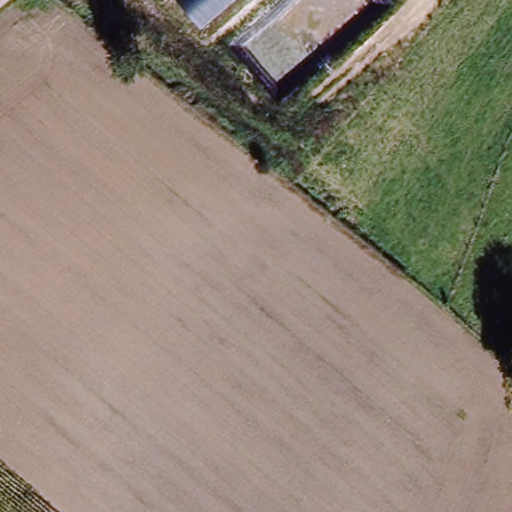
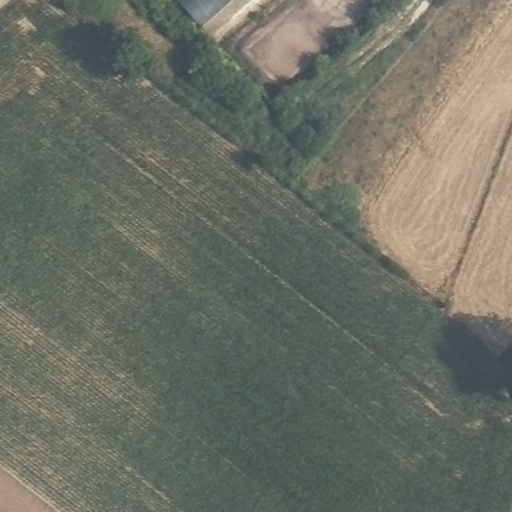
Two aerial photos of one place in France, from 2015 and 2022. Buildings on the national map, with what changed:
unchanged [(199,29),(174,0),(233,0),(199,29)]

